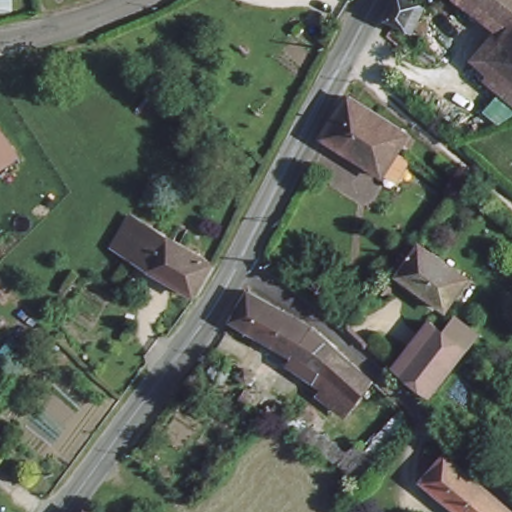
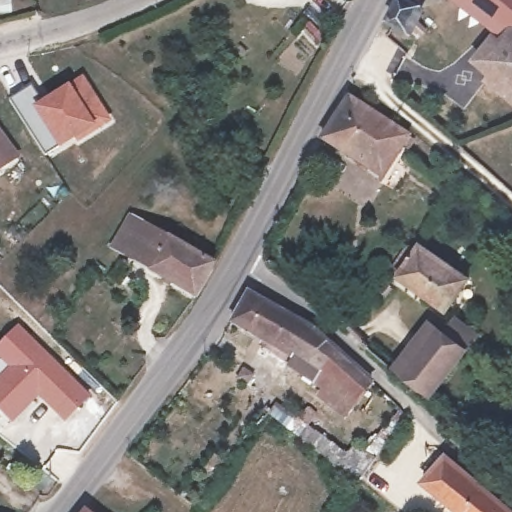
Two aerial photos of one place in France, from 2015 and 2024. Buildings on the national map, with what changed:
unchanged [(404,0),(413,0),(424,7),(413,27),(401,21),(394,17),(404,0)]
unchanged [(481,0),(512,0),(512,23),(481,0)]
unchanged [(494,75),(502,65),(493,56),(512,34),(512,89),(494,75)]
new [(41,99),(83,74),(112,121),(77,144),(75,141),(59,150),(32,105),(41,99)]
new [(31,84),(41,99),(32,105),(59,150),(47,156),(11,98),(31,84)]
unchanged [(349,98),(408,132),(387,170),(328,137),(349,98)]
unchanged [(0,165),(0,128),(18,152),(0,165)]
unchanged [(116,260),(132,223),(207,252),(188,289),(116,260)]
unchanged [(446,305),(404,271),(427,244),(467,275),(446,305)]
unchanged [(341,408),(301,376),(305,372),(227,316),(239,299),(306,322),(366,379),(341,408)]
new [(0,360),(0,340),(18,322),(91,395),(64,423),(37,397),(11,423),(0,412),(0,371),(5,366),(0,360)]
unchanged [(431,399),(405,378),(429,350),(420,342),(429,331),(444,343),(456,328),(476,345),(431,399)]
unchanged [(284,404),(291,396),(317,418),(309,426),(284,404)]
unchanged [(449,453),(512,511),(512,512),(454,512),(422,484),(449,453)]
unchanged [(81,512),(80,512),(81,511),(81,512)]

